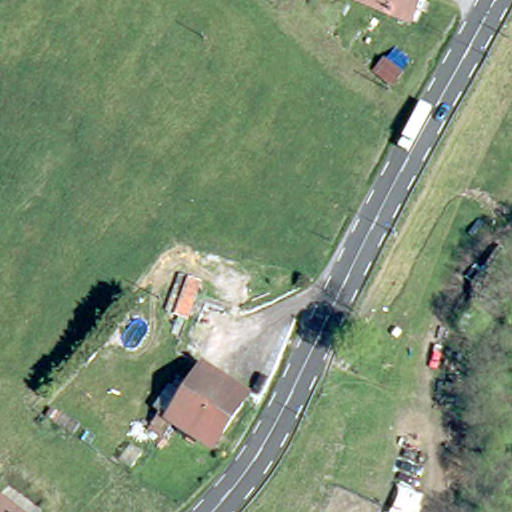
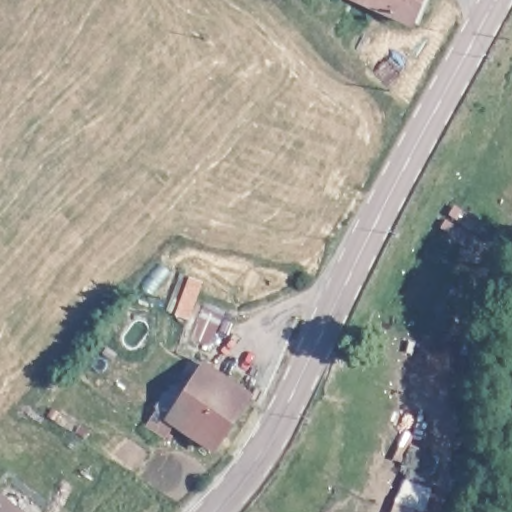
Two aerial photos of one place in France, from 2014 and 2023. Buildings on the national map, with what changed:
unchanged [(358,0),(413,0),(405,19),(358,0)]
unchanged [(202,279),(213,287),(189,323),(177,314),(202,279)]
unchanged [(175,402),(185,408),(213,367),(255,396),(219,449),(182,424),(172,439),(157,428),(175,402)]
unchanged [(0,503),(12,512),(0,512),(0,503)]

